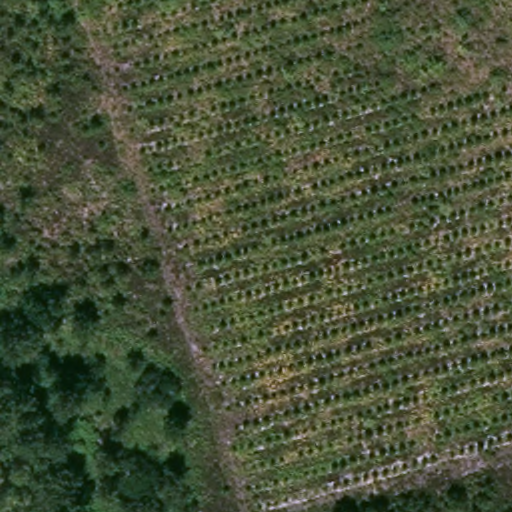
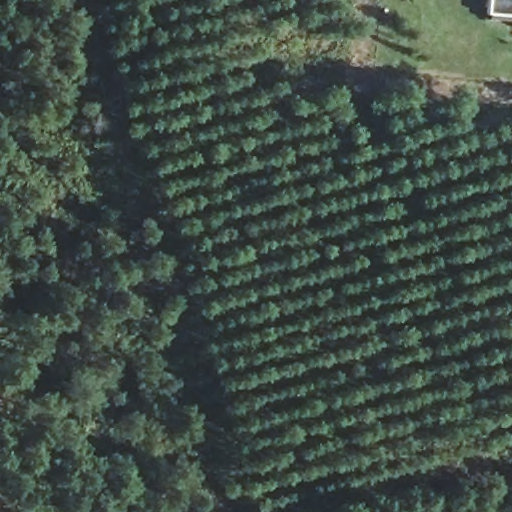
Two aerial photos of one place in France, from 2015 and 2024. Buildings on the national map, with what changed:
new [(487,17),(489,0),(512,0),(512,18),(487,17)]

